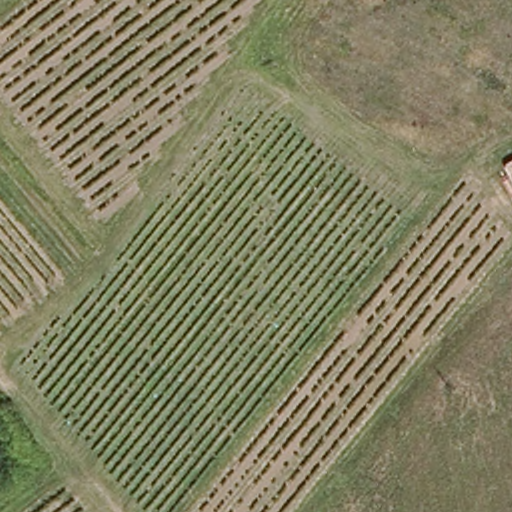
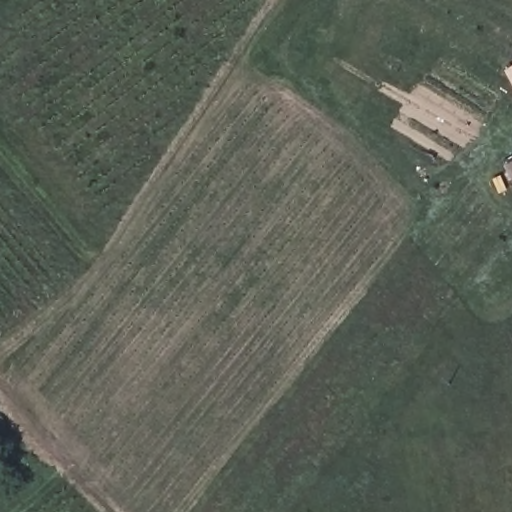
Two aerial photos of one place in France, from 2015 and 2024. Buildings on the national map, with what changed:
unchanged [(508,171),(512,168),(512,178),(508,171)]

